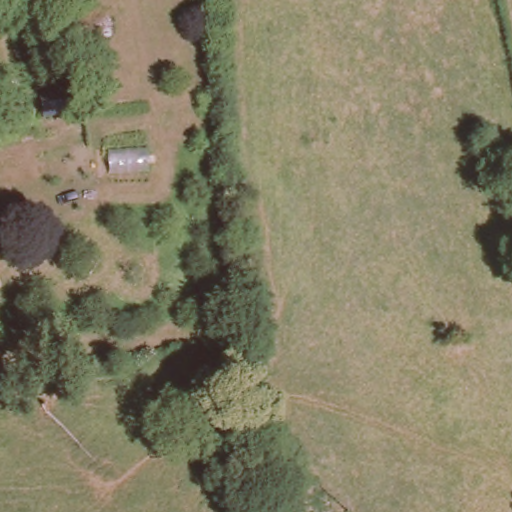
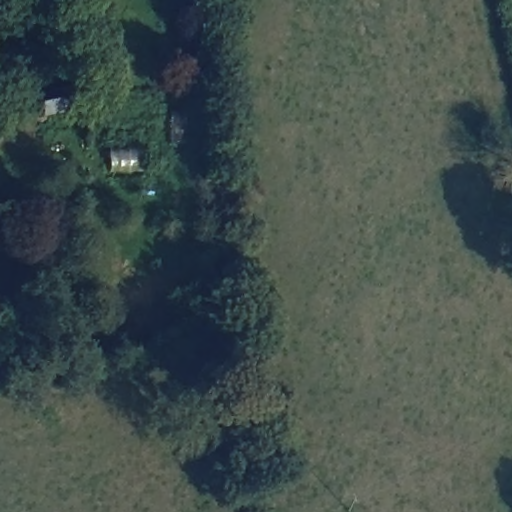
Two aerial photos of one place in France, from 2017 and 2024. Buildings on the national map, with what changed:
unchanged [(35,100),(59,94),(70,91),(75,113),(64,115),(40,121),(35,100)]

